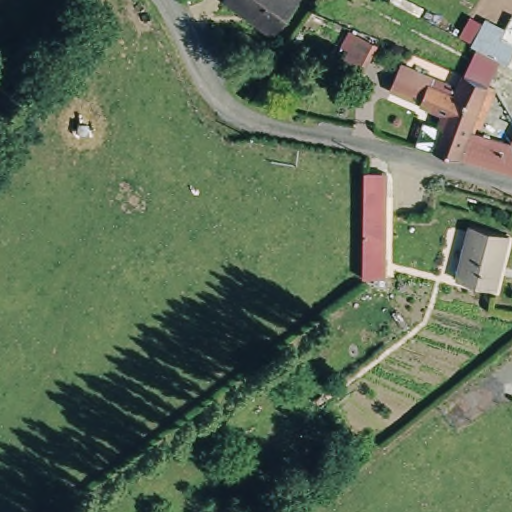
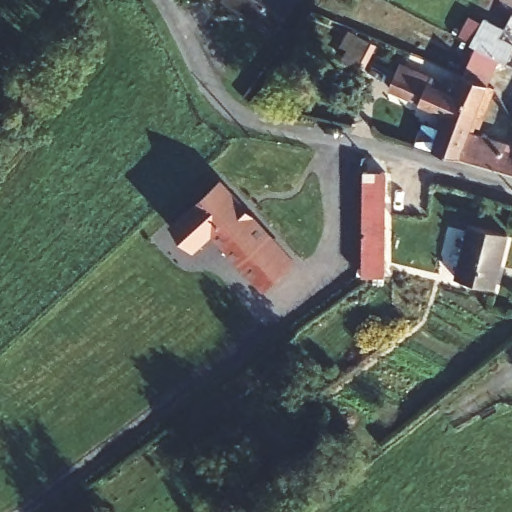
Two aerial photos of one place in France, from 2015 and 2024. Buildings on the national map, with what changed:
unchanged [(246,6),(244,9),(232,0),(291,0),(272,24),(246,6)]
unchanged [(506,7),(498,29),(512,37),(512,51),(509,59),(469,39),(486,0),(506,7)]
unchanged [(452,88),(463,67),(471,53),(497,66),(490,81),(474,113),(469,124),(456,151),(433,146),(444,105),(390,85),(397,67),(452,88)]
unchanged [(512,129),(512,168),(456,151),(469,124),(508,136),(512,129)]
unchanged [(383,273),(362,274),(365,168),(386,169),(383,273)]
new [(221,177),(296,260),(262,291),(212,235),(195,251),(170,224),(221,177)]
unchanged [(511,229),(497,285),(458,274),(472,219),(511,229)]

